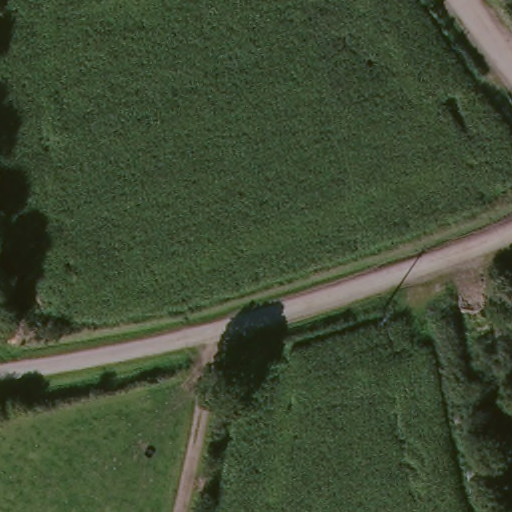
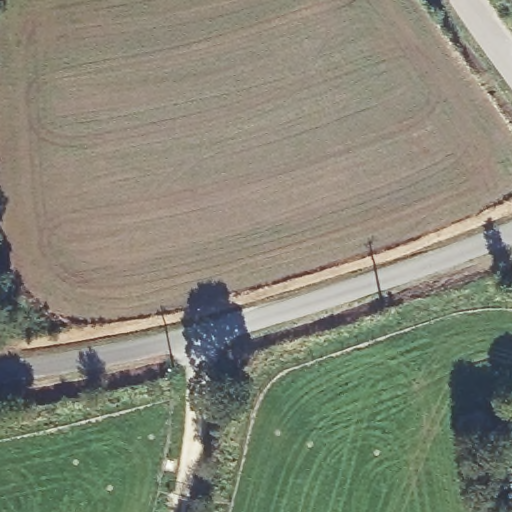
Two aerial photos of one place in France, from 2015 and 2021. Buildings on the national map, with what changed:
unchanged [(510,0),(512,0),(512,3),(510,0)]

